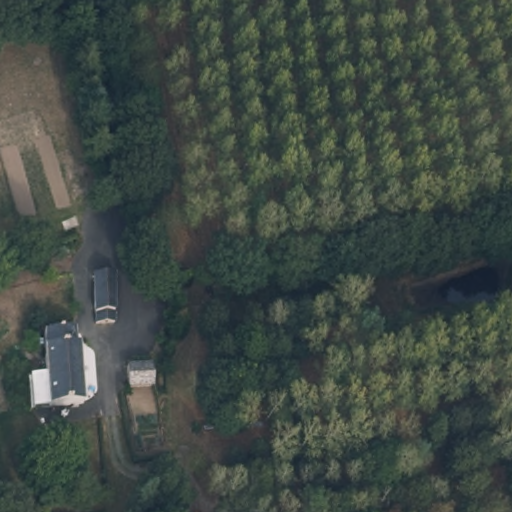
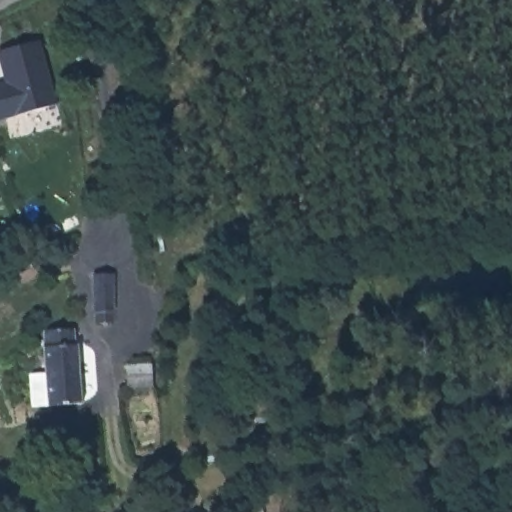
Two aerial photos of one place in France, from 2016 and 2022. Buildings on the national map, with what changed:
new [(0,63),(0,52),(40,39),(58,105),(0,120),(0,82),(5,81),(0,63)]
unchanged [(90,165),(94,196),(72,200),(68,169),(90,165)]
unchanged [(118,311),(93,311),(94,280),(116,270),(118,311)]
unchanged [(31,378),(44,376),(40,327),(73,325),(83,406),(49,406),(33,407),(31,378)]
unchanged [(153,362),(155,386),(126,387),(126,359),(153,362)]

